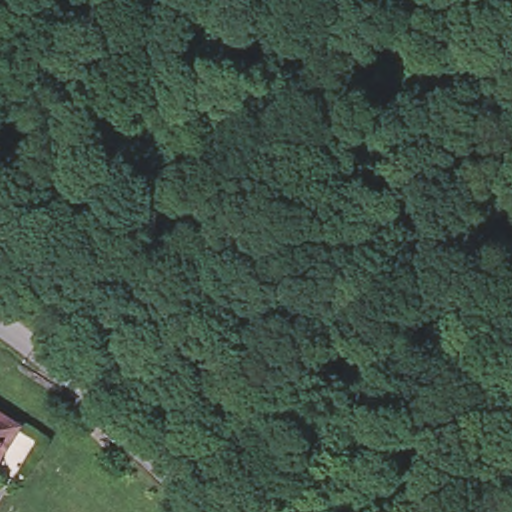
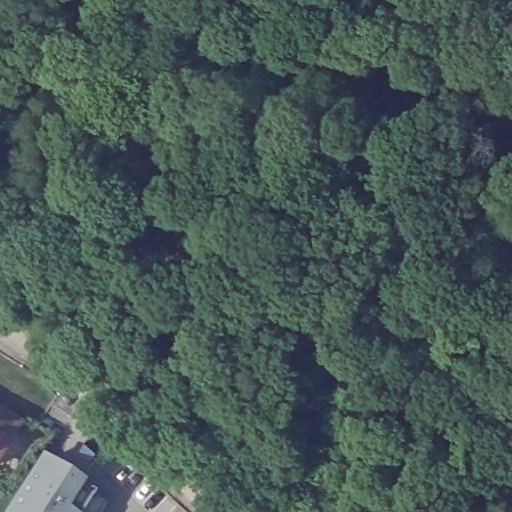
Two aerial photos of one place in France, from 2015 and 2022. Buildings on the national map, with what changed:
unchanged [(24,429),(0,466),(0,414),(24,429)]
new [(43,459),(87,488),(105,503),(100,512),(9,512),(43,459)]

